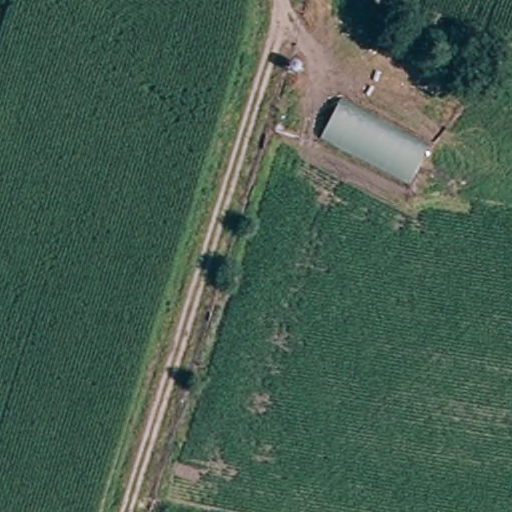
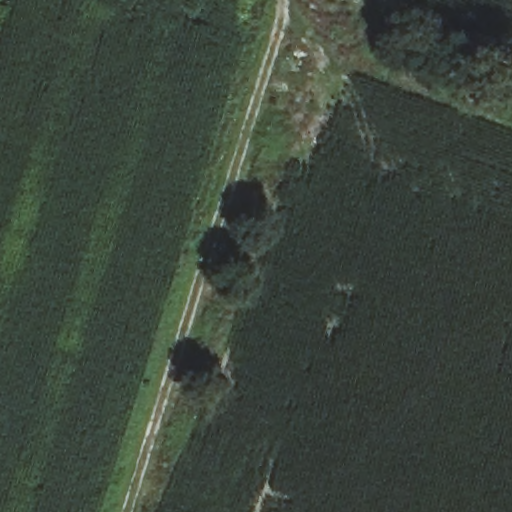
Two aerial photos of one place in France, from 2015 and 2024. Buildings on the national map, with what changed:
demolished [(320,142),(343,101),(432,149),(412,189),(320,142)]

